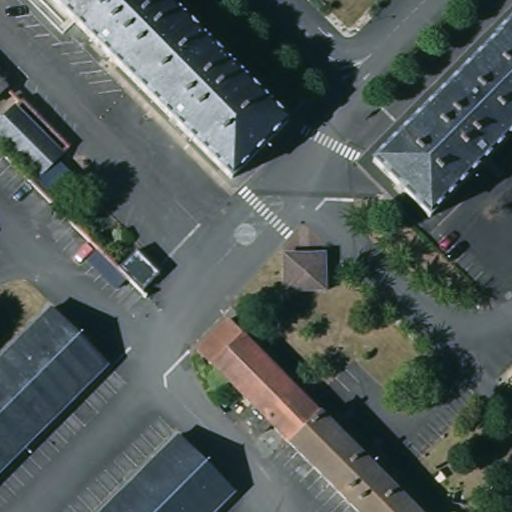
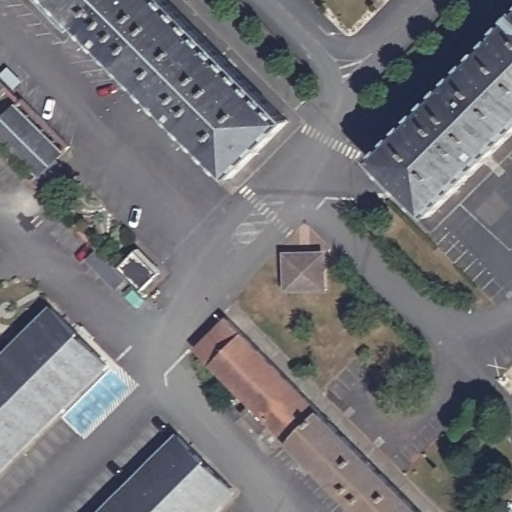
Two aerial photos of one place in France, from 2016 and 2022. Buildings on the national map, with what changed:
unchanged [(234,190),(42,0),(186,0),(304,119),(234,190)]
unchanged [(512,151),(428,235),(355,164),(512,7),(512,151)]
unchanged [(7,116),(11,112),(59,161),(48,171),(65,189),(37,216),(0,179),(0,109),(7,116)]
unchanged [(158,270),(138,290),(115,267),(136,247),(158,270)]
unchanged [(328,253),(328,290),(285,289),(285,252),(328,253)]
unchanged [(55,308),(111,365),(0,476),(0,362),(55,308)]
unchanged [(360,512),(198,347),(228,317),(419,512),(360,512)]
unchanged [(215,512),(108,512),(182,437),(236,490),(215,512)]

